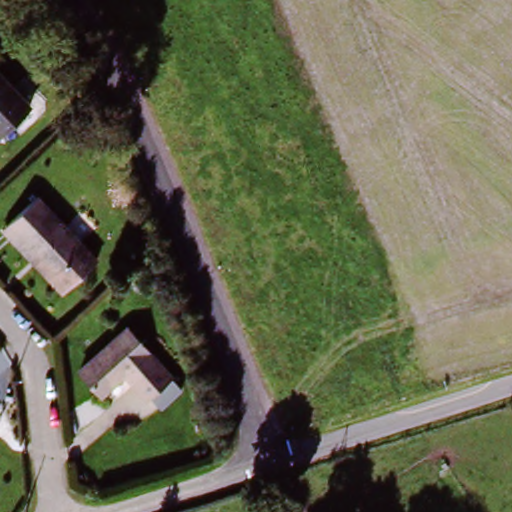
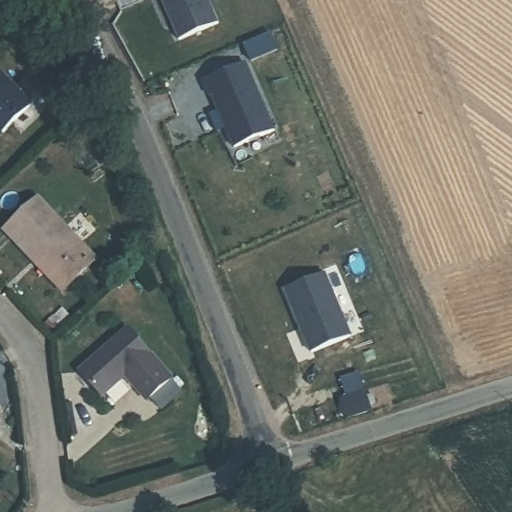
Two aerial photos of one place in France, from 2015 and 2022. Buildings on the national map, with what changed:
new [(222,24),(182,44),(162,0),(210,0),(222,24)]
new [(36,42),(16,20),(9,12),(21,1),(28,9),(48,31),(36,42)]
new [(255,82),(276,133),(234,152),(226,132),(227,132),(220,114),(218,115),(212,101),(255,82)]
unchanged [(24,113),(0,136),(0,87),(24,113)]
unchanged [(30,203),(80,251),(51,280),(2,233),(30,203)]
unchanged [(2,233),(51,280),(80,251),(93,265),(61,297),(0,237),(0,235),(2,233)]
new [(326,275),(353,338),(312,356),(284,293),(326,275)]
unchanged [(134,390),(125,381),(103,404),(80,381),(124,336),(171,382),(152,402),(149,405),(134,390)]

